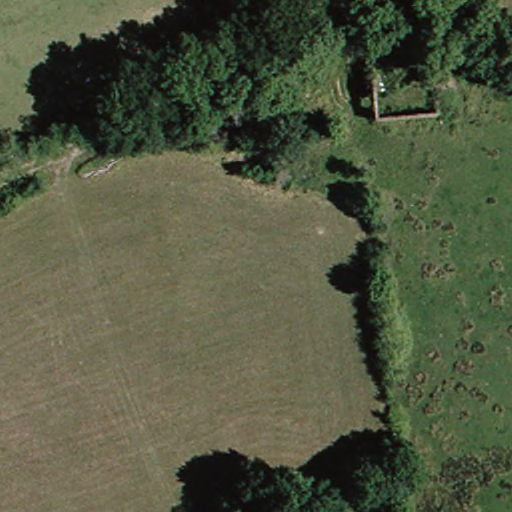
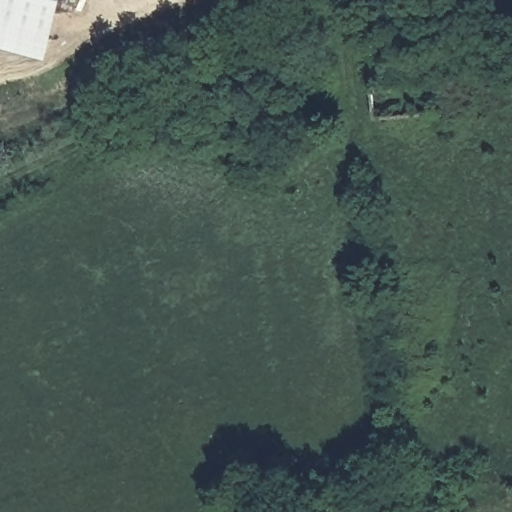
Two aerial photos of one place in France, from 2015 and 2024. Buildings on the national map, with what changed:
new [(53,58),(0,45),(0,0),(65,0),(53,58)]

